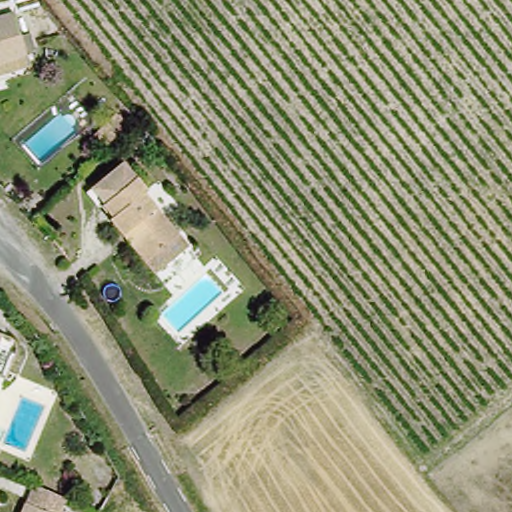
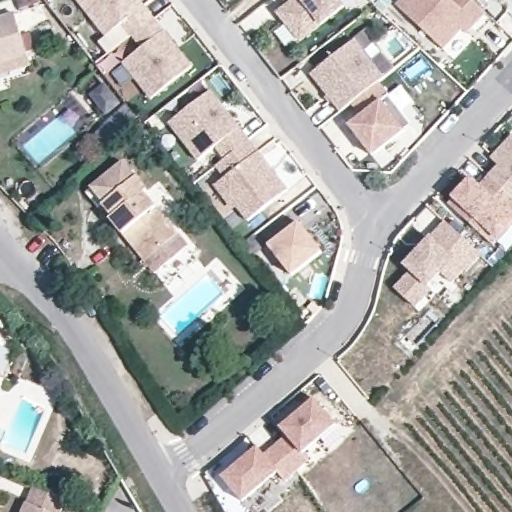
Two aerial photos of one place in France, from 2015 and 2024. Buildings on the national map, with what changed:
new [(151,15),(130,32),(128,33),(119,21),(104,33),(77,0),(139,0),(151,15)]
new [(341,3),(297,37),(276,10),(285,2),(283,0),(338,0),(341,3)]
new [(485,13),(467,35),(462,30),(445,50),(395,5),(400,0),(472,0),(485,13)]
unchanged [(0,17),(19,11),(30,50),(34,63),(0,74),(0,17)]
new [(140,44),(130,32),(151,15),(189,63),(148,95),(120,59),(140,44)]
new [(352,37),(381,75),(376,79),(349,100),(338,109),(309,72),(352,37)]
new [(359,113),(349,100),(376,79),(409,122),(370,152),(346,122),(359,113)]
new [(216,146),(200,160),(170,122),(212,91),(247,137),(222,156),(216,146)]
unchanged [(108,127),(106,125),(127,103),(140,118),(107,151),(95,140),(108,127)]
new [(497,161),(489,154),(511,130),(512,131),(512,196),(486,172),(497,161)]
new [(247,137),(285,186),(247,217),(217,179),(224,174),(214,162),(247,137)]
new [(93,187),(125,160),(138,176),(102,201),(93,187)]
new [(468,176),(476,183),(486,172),(512,196),(512,216),(489,240),(446,200),(468,176)]
unchanged [(132,245),(125,237),(108,217),(96,205),(138,176),(158,197),(154,201),(189,244),(164,266),(157,272),(132,245)]
new [(297,220),(320,250),(291,272),(268,242),(297,220)]
new [(417,307),(395,288),(409,272),(403,267),(432,237),(446,221),(482,254),(454,283),(442,272),(429,286),(433,290),(417,307)]
new [(285,432),(279,425),(312,396),(335,421),(300,450),(306,457),(295,467),(274,442),(285,432)]
new [(256,445),(262,452),(274,442),(295,467),(283,477),(278,470),(243,499),(222,473),(256,445)]
unchanged [(23,512),(25,507),(32,491),(64,504),(60,512),(23,512)]

